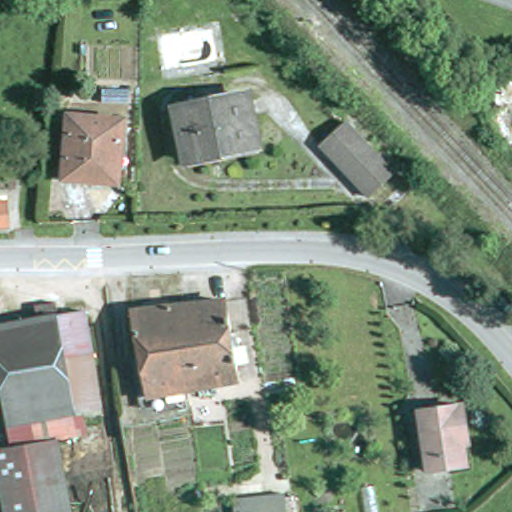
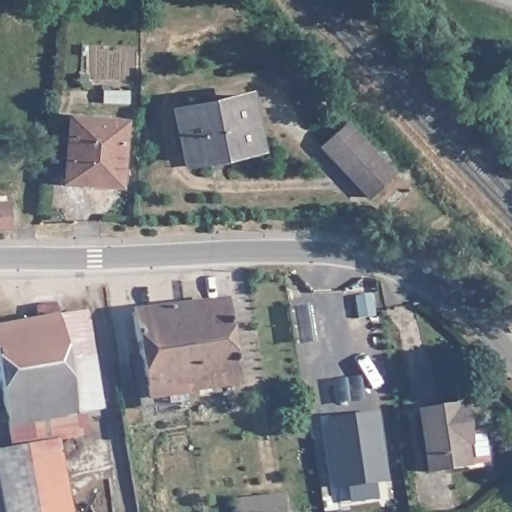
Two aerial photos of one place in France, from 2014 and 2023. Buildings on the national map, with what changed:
unchanged [(187,161),(177,111),(248,98),(258,146),(235,151),(235,148),(208,153),(209,156),(187,161)]
unchanged [(66,179),(72,118),(125,122),(118,184),(66,179)]
unchanged [(395,174),(369,198),(322,146),(347,124),(395,174)]
unchanged [(10,229),(0,229),(0,202),(8,202),(10,229)]
new [(370,294),(373,314),(357,317),(353,296),(370,294)]
unchanged [(34,305),(60,301),(63,315),(85,312),(103,408),(73,413),(77,438),(59,442),(72,512),(4,512),(0,489),(0,452),(11,449),(0,388),(0,327),(37,320),(34,305)]
unchanged [(226,302),(232,334),(237,334),(239,348),(233,349),(239,383),(212,387),(214,395),(200,398),(198,389),(197,389),(182,307),(226,302)]
unchanged [(133,313),(182,307),(197,389),(150,398),(133,313)]
new [(308,308),(313,339),(297,342),(292,310),(308,308)]
unchanged [(467,428),(461,429),(466,461),(428,467),(420,407),(463,402),(467,428)]
new [(335,488),(325,419),(380,411),(388,480),(335,488)]
unchanged [(285,512),(234,512),(233,500),(283,494),(285,512)]

